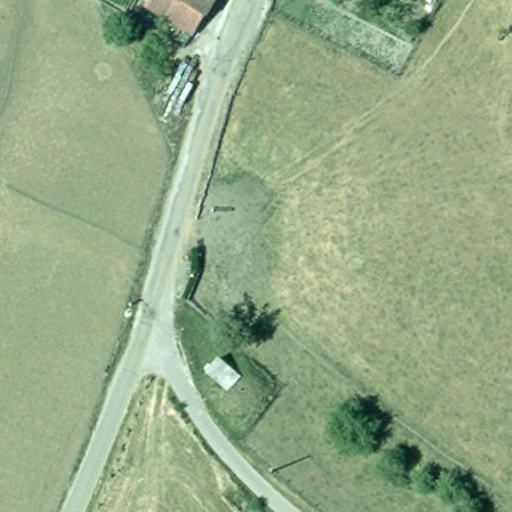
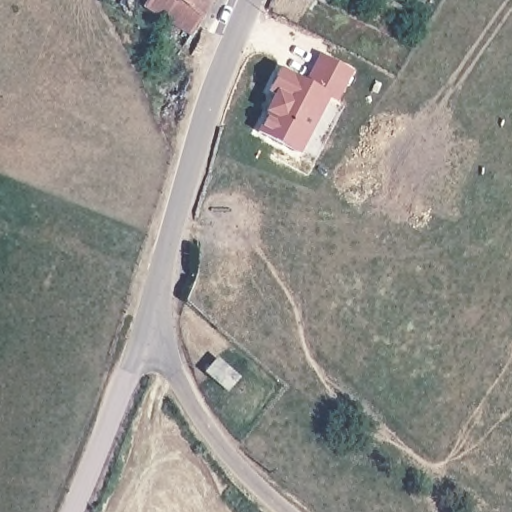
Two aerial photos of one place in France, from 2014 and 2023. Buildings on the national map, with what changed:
unchanged [(195,36),(148,6),(151,0),(217,0),(206,17),(195,36)]
new [(259,132),(269,112),(267,112),(276,94),(270,91),(280,70),(307,84),(322,56),(352,71),(338,100),(328,95),(299,152),(259,132)]

